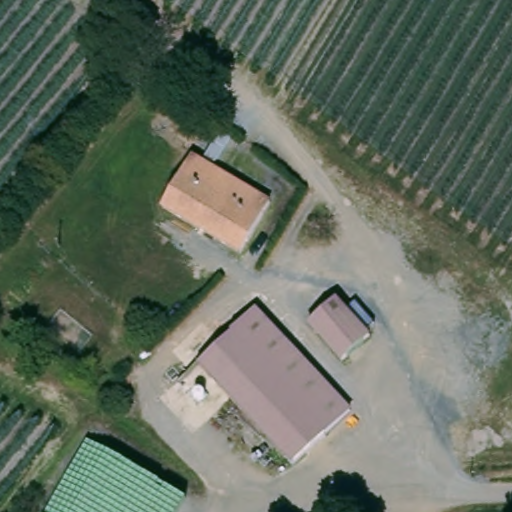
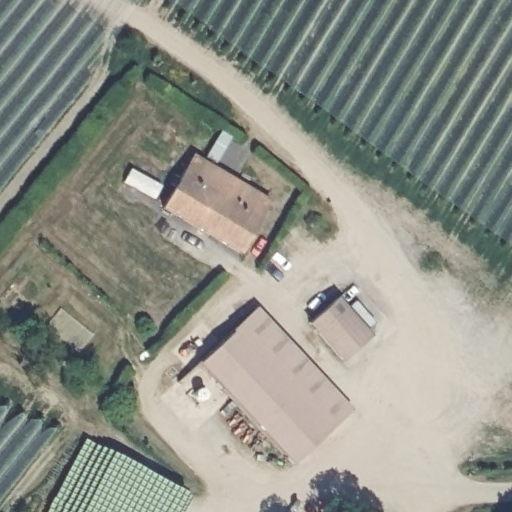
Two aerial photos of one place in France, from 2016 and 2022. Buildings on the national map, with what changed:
unchanged [(233,171),(225,186),(268,215),(240,260),(159,210),(196,149),(233,171)]
unchanged [(341,360),(308,323),(339,298),(371,335),(341,360)]
unchanged [(196,369),(262,300),(352,388),(340,401),(285,456),(196,369)]

